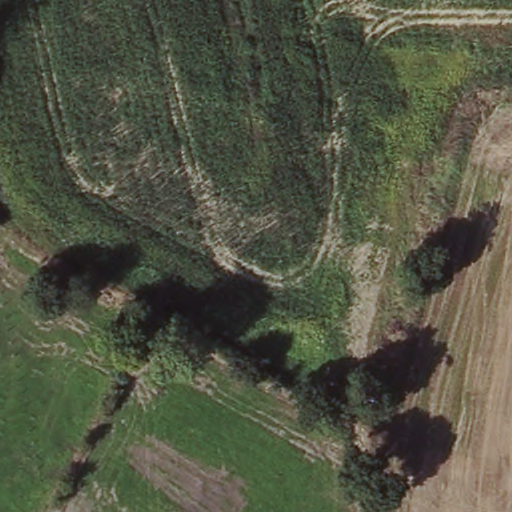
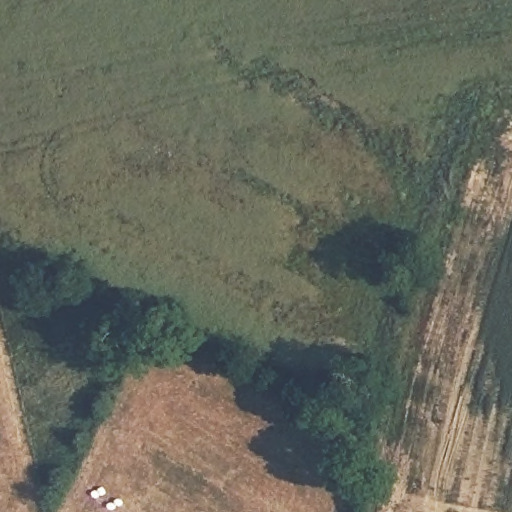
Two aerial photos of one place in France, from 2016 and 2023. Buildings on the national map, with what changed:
[]

